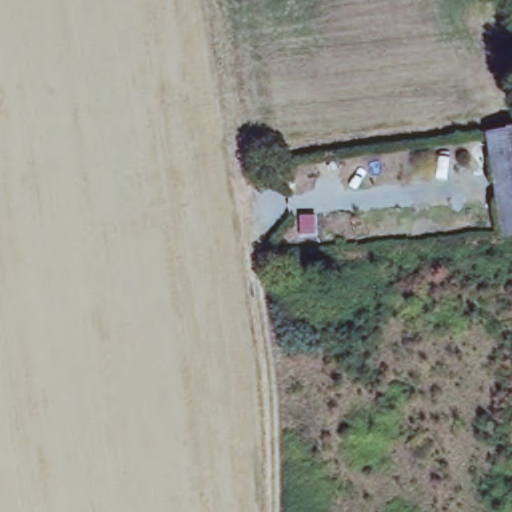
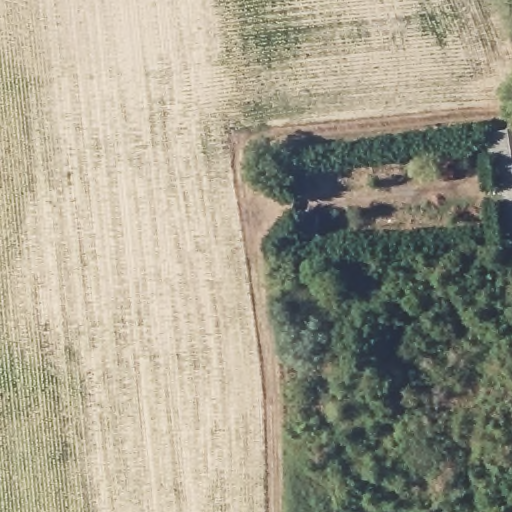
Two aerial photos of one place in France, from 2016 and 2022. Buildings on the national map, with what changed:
unchanged [(512,226),(502,227),(487,132),(512,129),(512,226)]

